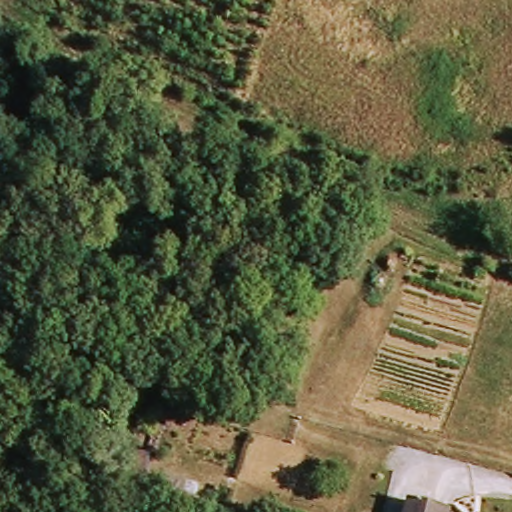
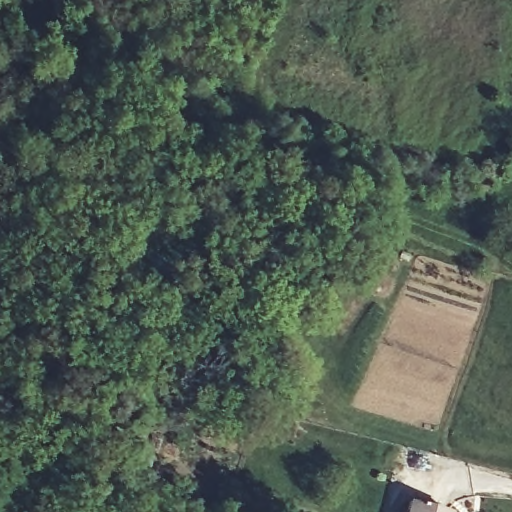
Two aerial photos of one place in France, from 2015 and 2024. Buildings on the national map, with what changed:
unchanged [(434,512),(412,512),(413,506),(434,512)]

